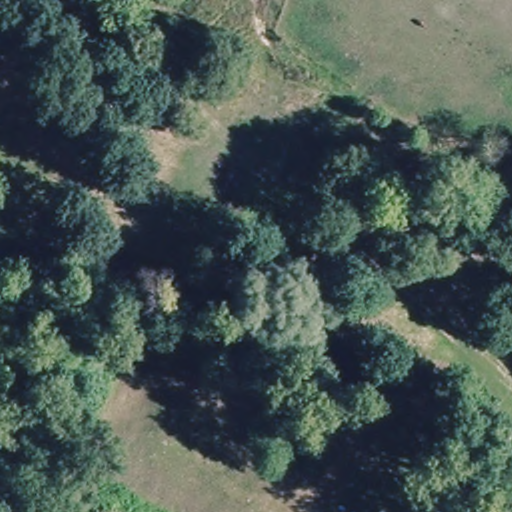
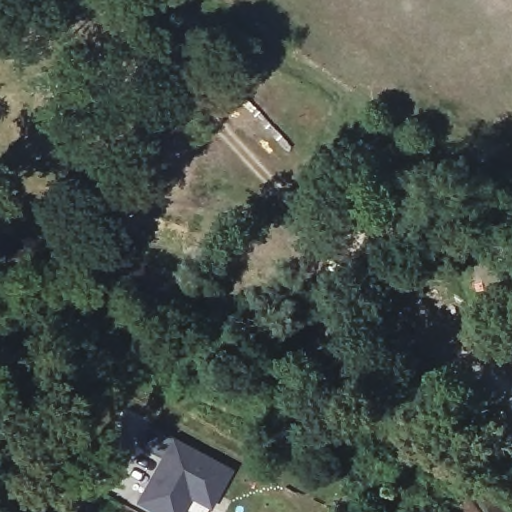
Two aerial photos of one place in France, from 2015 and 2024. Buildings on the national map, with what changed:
new [(190,500),(184,512),(151,512),(135,504),(158,458),(135,446),(146,426),(231,470),(211,510),(190,500)]

